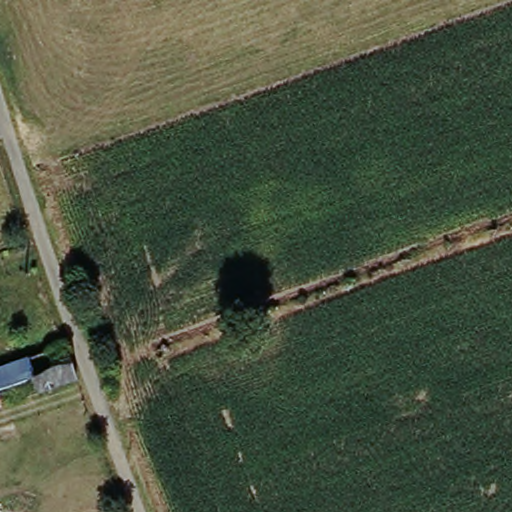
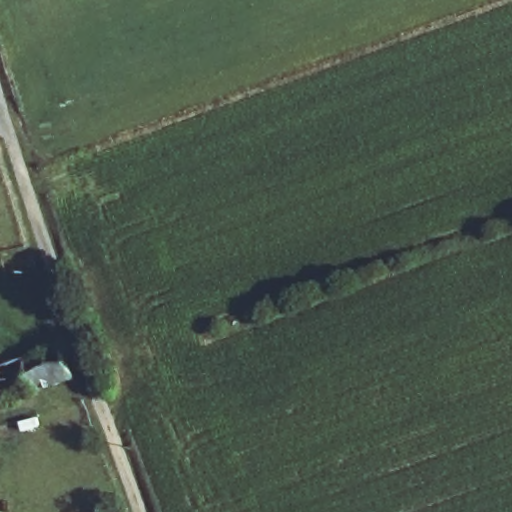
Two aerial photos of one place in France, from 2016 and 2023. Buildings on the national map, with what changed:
unchanged [(80,379),(0,407),(0,370),(68,345),(80,379)]

